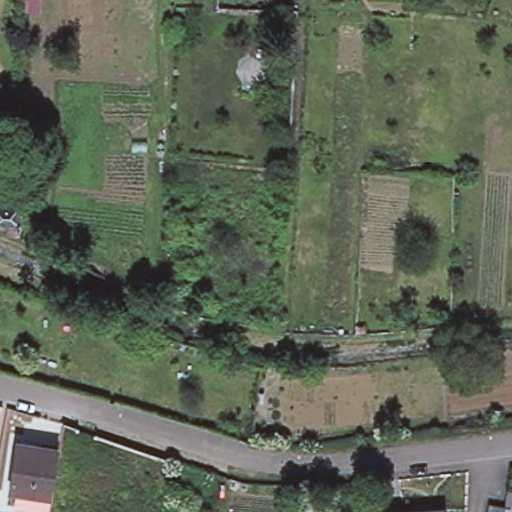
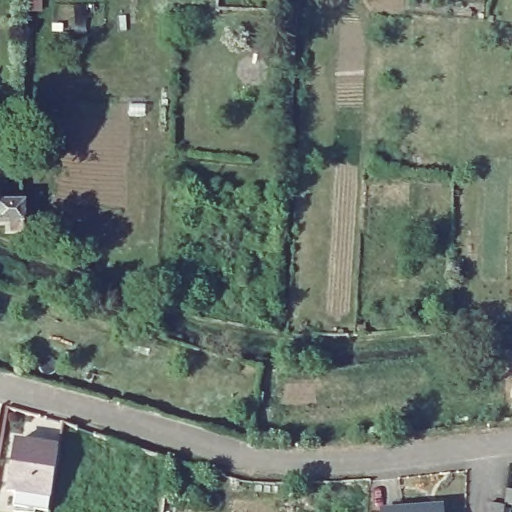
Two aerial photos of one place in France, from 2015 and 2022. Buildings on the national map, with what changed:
unchanged [(22,201),(21,230),(18,230),(8,229),(8,222),(0,221),(0,200),(22,201)]
unchanged [(9,500),(11,484),(4,483),(11,435),(54,441),(46,490),(44,505),(9,500)]
unchanged [(505,512),(489,512),(491,506),(506,508),(505,512)]
unchanged [(446,512),(421,512),(446,510),(446,512)]

